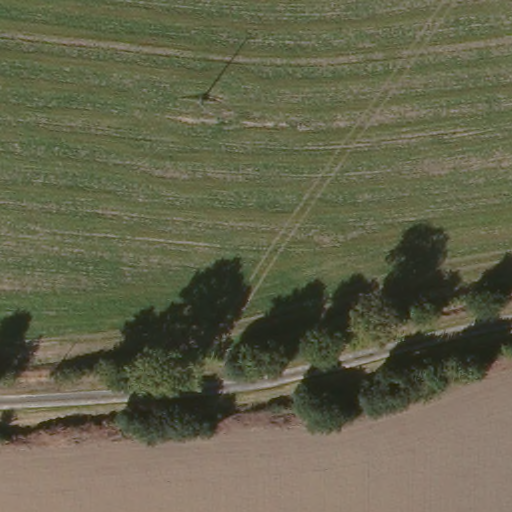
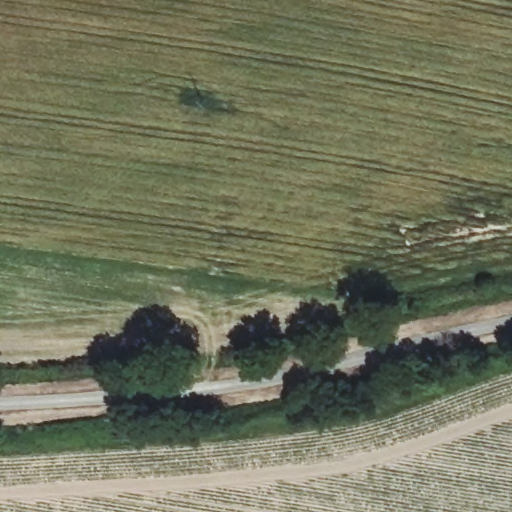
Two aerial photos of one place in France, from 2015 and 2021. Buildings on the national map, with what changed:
[]

